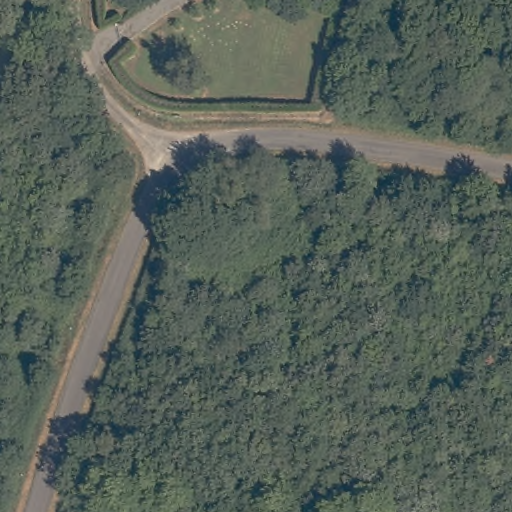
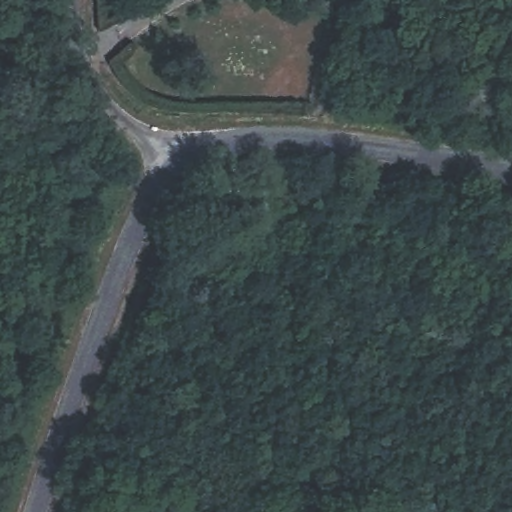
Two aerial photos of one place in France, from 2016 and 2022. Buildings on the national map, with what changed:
[]

